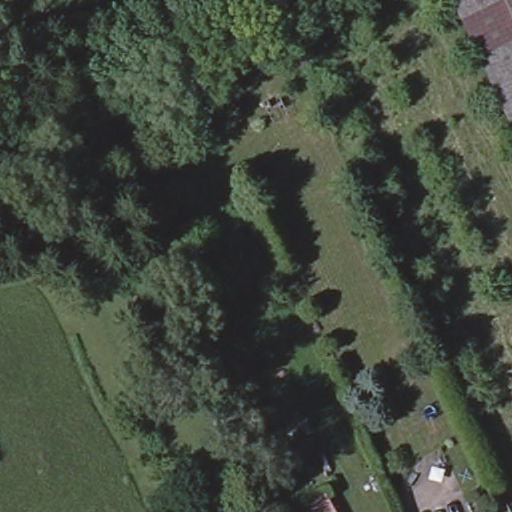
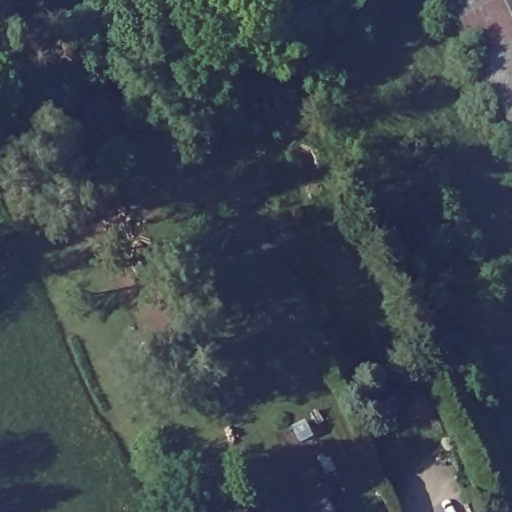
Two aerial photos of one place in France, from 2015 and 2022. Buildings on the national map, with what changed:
unchanged [(458,0),(512,0),(512,122),(458,0)]
unchanged [(333,512),(328,512),(332,510),(333,512)]

